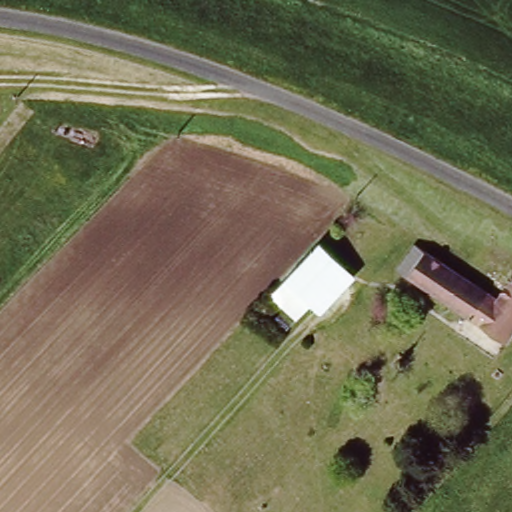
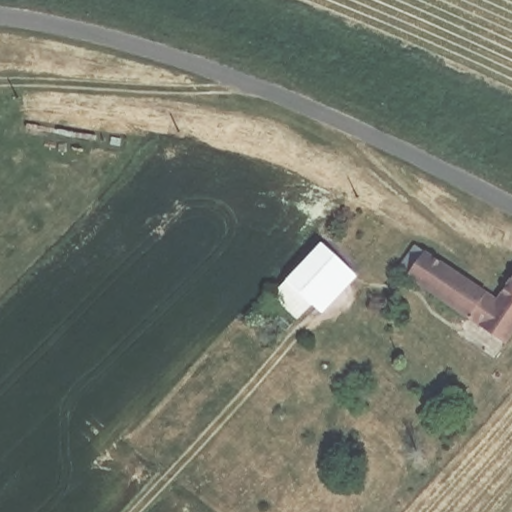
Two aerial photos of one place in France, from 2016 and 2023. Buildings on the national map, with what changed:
unchanged [(345,272),(308,308),(282,282),(317,248),(345,272)]
unchanged [(398,280),(415,255),(500,302),(512,286),(512,339),(507,347),(398,280)]
unchanged [(500,375),(503,370),(508,373),(505,377),(500,375)]

